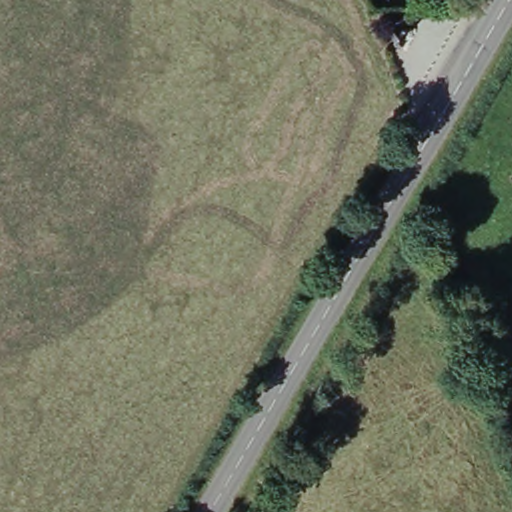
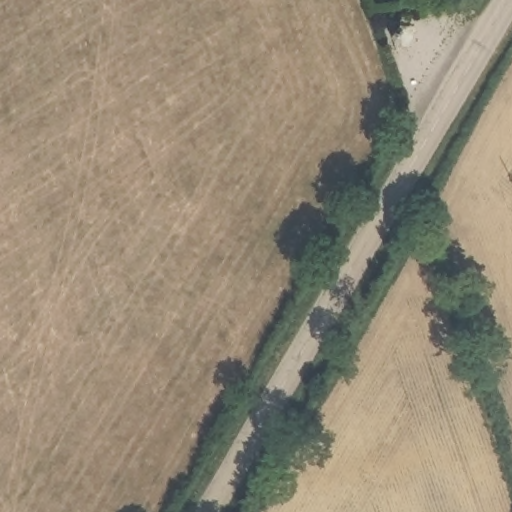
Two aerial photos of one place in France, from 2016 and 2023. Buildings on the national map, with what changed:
[]

